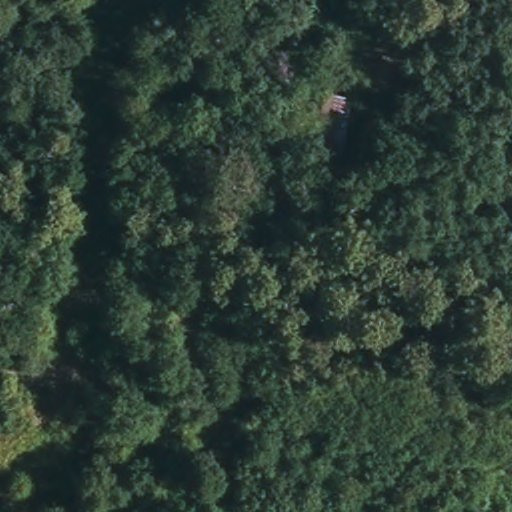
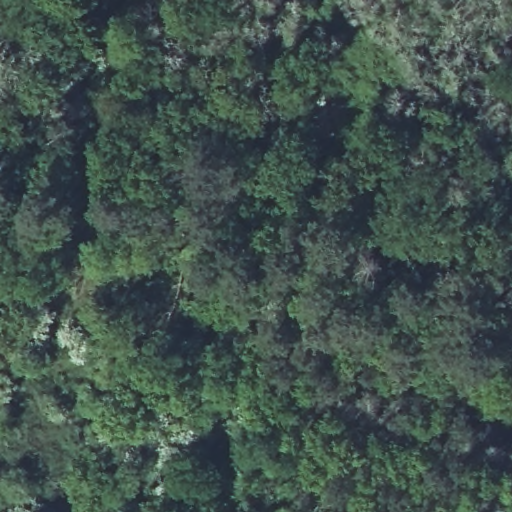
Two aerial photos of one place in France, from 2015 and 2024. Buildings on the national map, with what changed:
unchanged [(323,151),(322,88),(347,89),(347,154),(323,151)]

